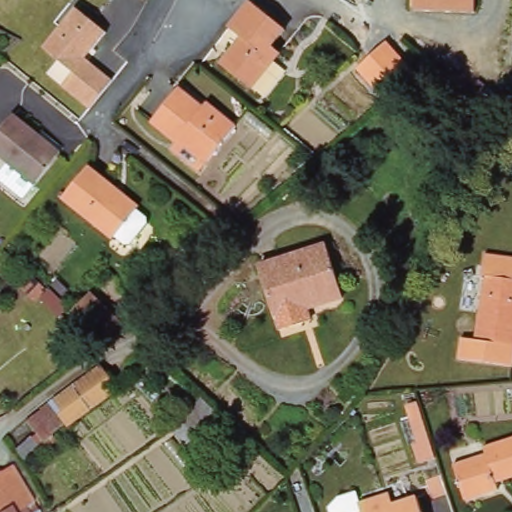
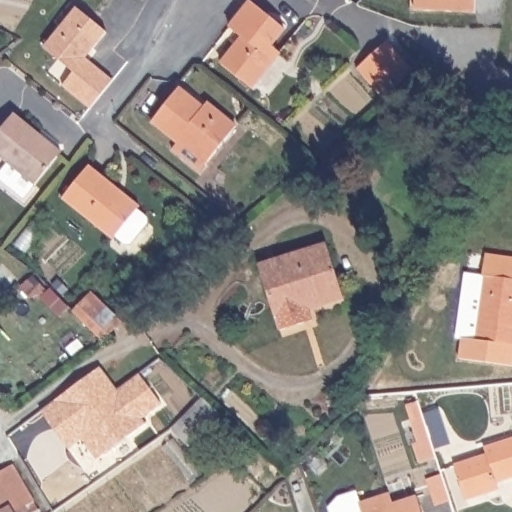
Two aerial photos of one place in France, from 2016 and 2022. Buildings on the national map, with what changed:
unchanged [(474,13),(414,10),(414,0),(474,0),(474,13)]
unchanged [(245,9),(249,4),(284,30),(270,49),(279,56),(252,92),(221,68),(241,41),(228,32),(245,9)]
unchanged [(90,107),(64,86),(74,73),(44,49),(75,9),(106,33),(92,50),(89,47),(84,53),(85,58),(112,80),(90,107)]
unchanged [(411,67),(380,97),(355,70),(386,41),(411,67)]
unchanged [(477,80),(486,87),(479,97),(469,90),(477,80)]
unchanged [(210,118),(214,114),(231,127),(197,173),(171,153),(176,146),(148,124),(174,90),(210,118)]
unchanged [(10,114),(57,152),(31,185),(0,159),(0,127),(10,114)]
unchanged [(147,229),(130,250),(124,251),(113,242),(111,244),(62,203),(90,169),(140,211),(137,214),(147,223),(147,229)]
unchanged [(326,245),(340,291),(297,305),(304,324),(281,331),(261,266),(326,245)]
unchanged [(483,273),(487,251),(512,255),(512,278),(485,273),(483,273)]
unchanged [(48,279),(49,280),(28,300),(17,288),(37,270),(48,279)]
unchanged [(512,278),(512,304),(495,303),(480,302),(485,273),(512,278)]
unchanged [(97,343),(69,314),(75,309),(89,294),(117,323),(97,343)]
unchanged [(495,303),(512,304),(512,346),(474,339),(480,302),(495,303)]
unchanged [(457,358),(460,337),(474,339),(512,346),(512,354),(509,367),(457,358)]
demolished [(31,440),(36,437),(25,421),(50,402),(51,404),(99,369),(116,392),(98,405),(68,426),(66,425),(62,428),(36,447),(31,440)]
new [(141,418),(145,424),(96,459),(82,439),(68,448),(42,411),(100,369),(117,391),(139,374),(161,403),(141,418)]
unchanged [(170,426),(181,419),(178,416),(199,399),(201,401),(208,409),(219,418),(201,438),(191,448),(170,426)]
unchanged [(416,462),(410,442),(415,441),(409,417),(418,414),(432,457),(416,462)]
unchanged [(483,441),(512,433),(512,481),(463,495),(453,457),(485,447),(483,441)]
unchanged [(9,467),(32,505),(24,510),(26,512),(8,512),(6,509),(1,512),(0,512),(0,473),(9,467)]
unchanged [(428,497),(422,478),(437,474),(442,493),(428,497)]
unchanged [(393,498),(395,508),(419,500),(422,512),(363,512),(361,507),(393,498)]
unchanged [(8,512),(1,512),(6,509),(8,512)]

